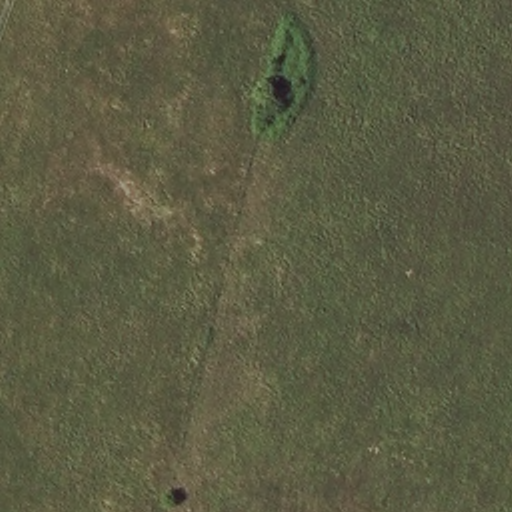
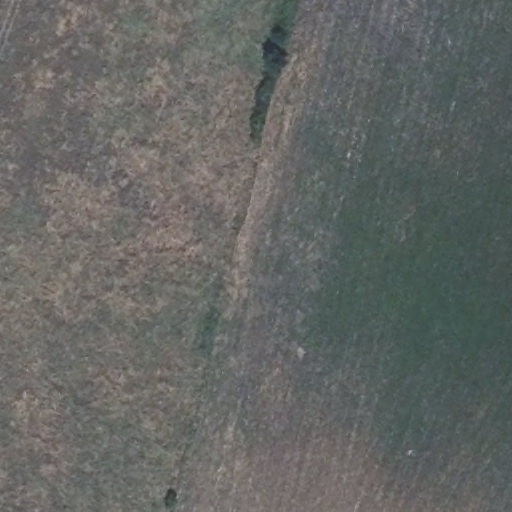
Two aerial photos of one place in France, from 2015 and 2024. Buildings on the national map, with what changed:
[]

